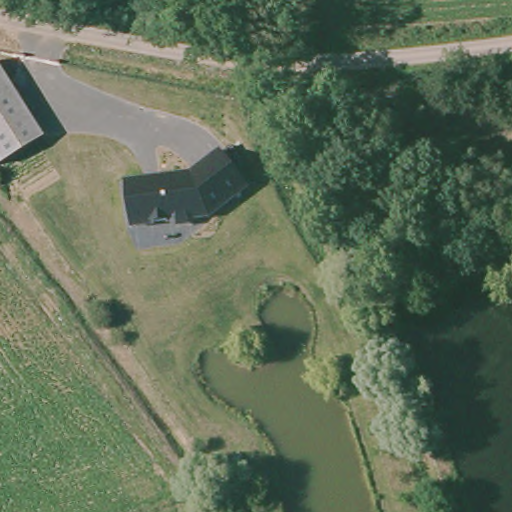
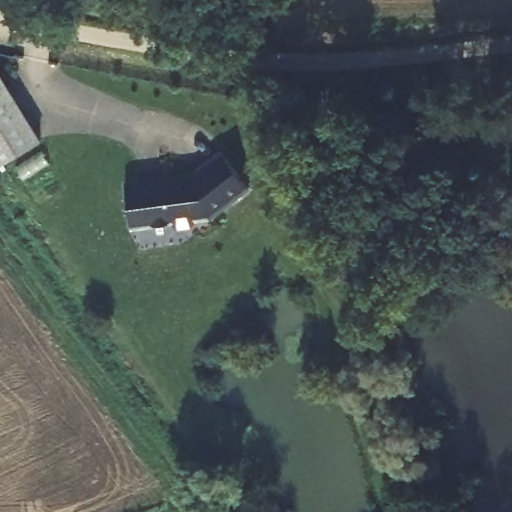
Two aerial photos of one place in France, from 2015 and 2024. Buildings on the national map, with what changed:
unchanged [(0,165),(0,72),(42,140),(0,165)]
unchanged [(192,174),(220,149),(253,188),(214,223),(130,231),(126,183),(192,174)]

